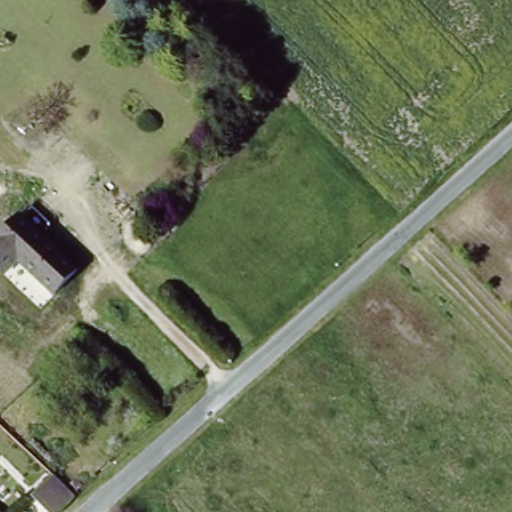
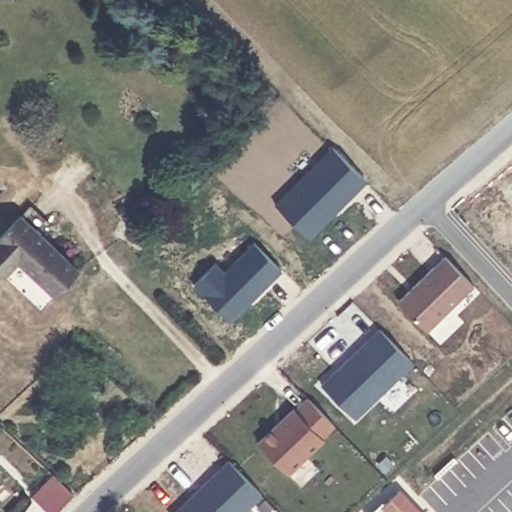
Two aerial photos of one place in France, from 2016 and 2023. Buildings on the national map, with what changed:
new [(333,148),(367,182),(310,239),(276,205),(333,148)]
unchanged [(25,220),(82,274),(46,313),(0,270),(0,248),(25,220)]
new [(445,257),(472,287),(426,330),(399,301),(445,257)]
new [(378,329),(412,365),(356,420),(320,383),(378,329)]
new [(292,406),(295,410),(307,398),(335,429),(323,441),(325,442),(290,474),(259,442),(292,406)]
new [(230,461),(263,497),(247,512),(174,512),(230,461)]
unchanged [(30,499),(54,475),(73,498),(59,512),(43,512),(30,499)]
new [(384,501),(386,505),(400,492),(419,512),(372,512),(384,501)]

